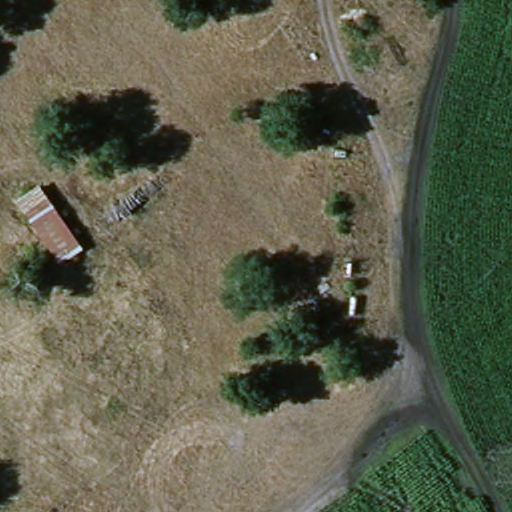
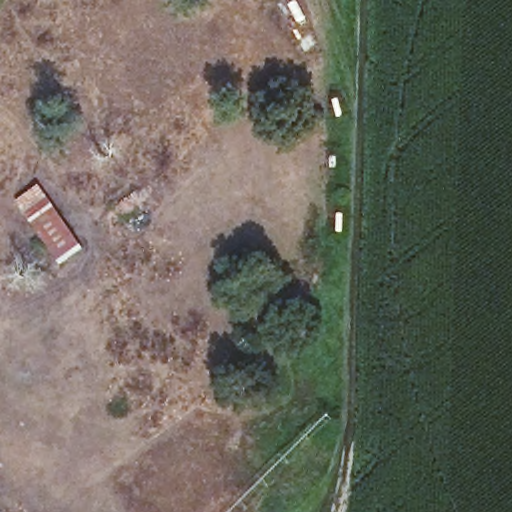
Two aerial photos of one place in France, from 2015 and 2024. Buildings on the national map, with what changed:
unchanged [(57,267),(13,203),(39,184),(84,250),(57,267)]

